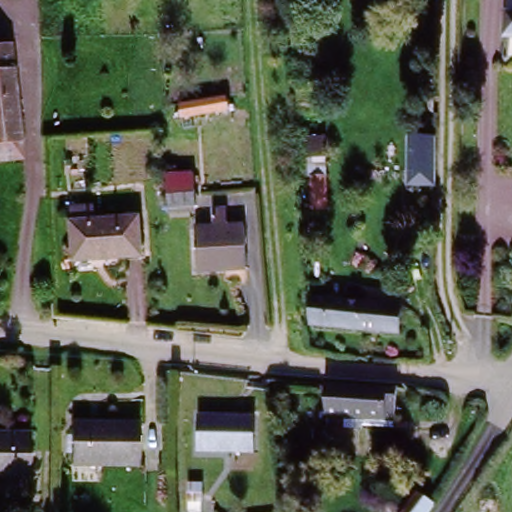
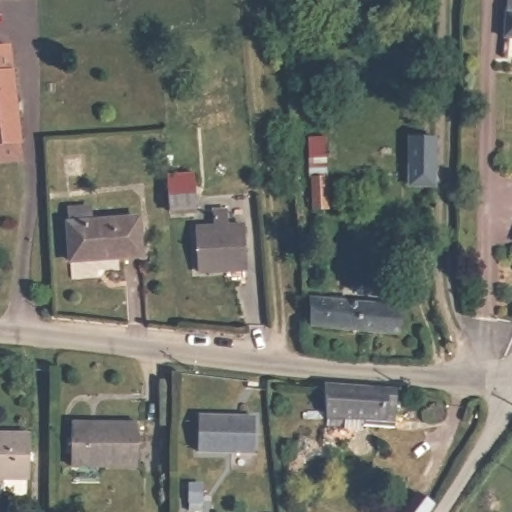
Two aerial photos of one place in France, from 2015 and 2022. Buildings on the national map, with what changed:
unchanged [(507,43),(508,16),(512,17),(512,43),(507,43)]
unchanged [(0,148),(0,55),(10,54),(22,145),(0,148)]
unchanged [(233,116),(188,125),(181,107),(230,99),(233,116)]
unchanged [(410,188),(412,144),(437,141),(435,190),(410,188)]
unchanged [(331,211),(314,213),(307,149),(332,146),(335,160),(328,160),(331,211)]
unchanged [(197,215),(170,217),(167,176),(195,175),(197,215)]
unchanged [(91,258),(90,220),(135,219),(137,256),(91,258)]
unchanged [(234,234),(246,233),(249,271),(201,274),(198,235),(217,234),(216,223),(233,221),(234,234)]
unchanged [(396,339),(309,327),(313,303),(400,314),(396,339)]
unchanged [(322,427),(322,418),(323,387),(385,394),(395,394),(392,429),(361,428),(362,420),(343,419),(343,429),(322,427)]
unchanged [(255,415),(255,453),(197,451),(198,413),(255,415)]
unchanged [(72,468),(71,427),(137,426),(137,467),(72,468)]
unchanged [(27,474),(0,475),(0,436),(26,436),(27,474)]
unchanged [(203,512),(189,512),(190,487),(203,487),(203,512)]
unchanged [(431,512),(405,512),(418,494),(435,506),(431,512)]

